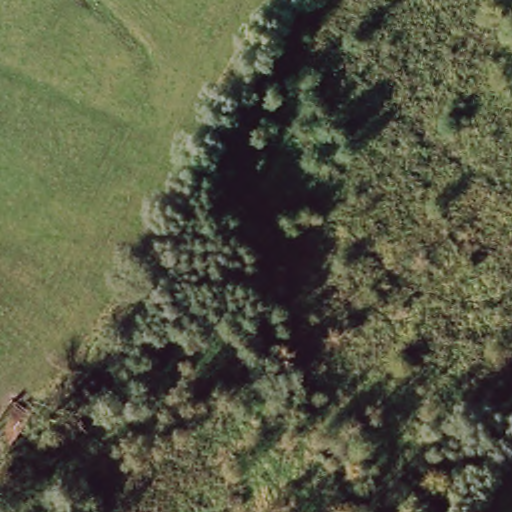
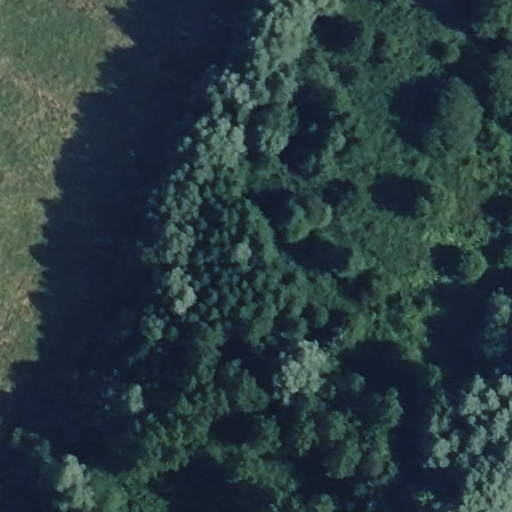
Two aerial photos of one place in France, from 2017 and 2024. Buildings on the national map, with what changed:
[]

